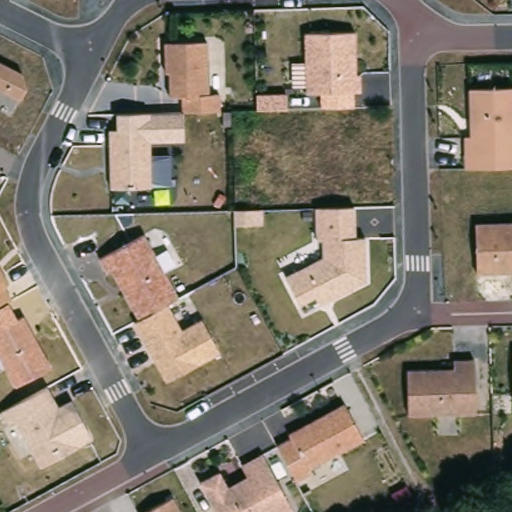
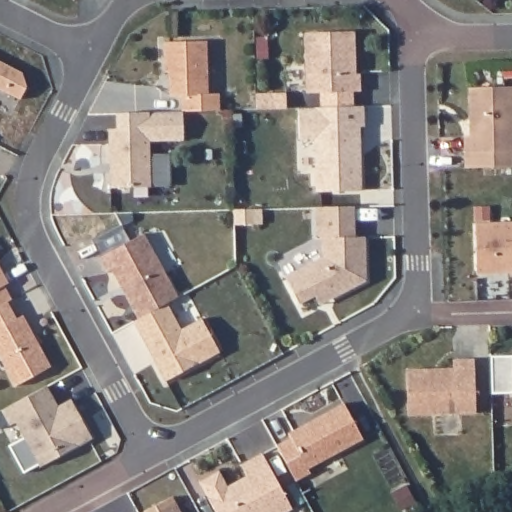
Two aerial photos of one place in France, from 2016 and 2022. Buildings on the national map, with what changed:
unchanged [(356,76),(361,76),(360,96),(305,96),(304,35),(355,35),(356,76)]
unchanged [(107,130),(116,129),(115,114),(180,113),(179,98),(168,98),(167,76),(163,73),(162,44),(206,42),(207,94),(219,94),(220,111),(186,113),(186,141),(151,141),(151,189),(108,190),(107,130)]
unchanged [(26,90),(20,101),(0,95),(0,64),(20,74),(26,90)]
unchanged [(510,91),(512,119),(512,169),(464,170),(463,139),(469,138),(467,91),(510,91)]
new [(298,141),(298,109),(365,106),(365,126),(360,126),(361,190),(316,193),(314,140),(298,141)]
unchanged [(354,210),(354,238),(366,240),(366,283),(319,309),(314,302),(298,309),(284,278),(321,260),(321,242),(313,242),(313,210),(354,210)]
unchanged [(475,276),(473,226),(512,224),(512,274),(475,276)]
unchanged [(220,356),(166,386),(133,325),(139,321),(111,272),(106,274),(99,259),(142,238),(177,300),(166,307),(182,332),(200,323),(220,356)]
unchanged [(0,307),(0,273),(13,300),(0,307)]
unchanged [(48,369),(13,389),(0,361),(0,330),(24,317),(48,369)]
unchanged [(511,408),(512,352),(512,407),(511,408)]
unchanged [(452,371),(452,362),(473,363),(471,417),(406,418),(406,372),(452,371)]
unchanged [(47,390),(55,407),(69,402),(92,440),(39,469),(16,421),(6,425),(0,412),(47,390)]
unchanged [(289,441),(287,436),(343,407),(361,442),(310,467),(312,473),(293,481),(276,446),(289,441)]
unchanged [(219,474),(226,487),(246,478),(240,466),(263,455),(293,510),(290,512),(214,512),(198,483),(219,474)]
unchanged [(179,512),(149,512),(172,500),(179,512)]

